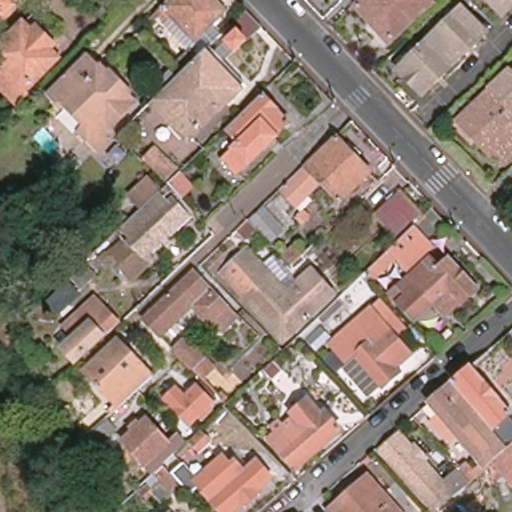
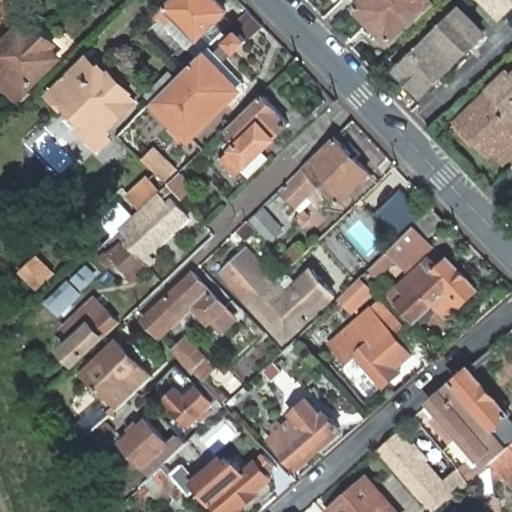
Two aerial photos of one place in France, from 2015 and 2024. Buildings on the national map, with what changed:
unchanged [(13,0),(16,4),(0,19),(0,0),(13,0)]
unchanged [(196,42),(175,19),(166,27),(160,21),(155,26),(150,21),(164,7),(166,9),(176,0),(213,0),(226,14),(196,42)]
unchanged [(428,0),(426,2),(431,7),(393,42),(375,23),(372,25),(357,10),(367,0),(428,0)]
unchanged [(484,0),(512,0),(512,7),(501,17),(484,0)]
unchanged [(462,12),(484,35),(423,94),(401,72),(462,12)]
unchanged [(25,94),(15,104),(0,88),(0,69),(0,68),(0,40),(19,22),(28,31),(37,22),(55,41),(46,49),(52,55),(18,87),(25,94)]
unchanged [(150,107),(180,79),(185,74),(179,68),(189,57),(195,64),(200,60),(207,52),(242,90),(235,97),(185,144),(150,107)]
unchanged [(106,142),(96,152),(74,129),(79,124),(65,108),(52,96),(92,57),(104,69),(137,105),(102,138),(106,142)]
unchanged [(465,122),(468,119),(465,116),(477,103),(482,108),(502,90),(504,92),(512,84),(512,159),(510,160),(501,151),(496,155),(480,137),(473,142),(460,127),(465,122)]
unchanged [(265,99),(290,127),(237,177),(223,161),(239,145),(227,133),(265,99)]
unchanged [(341,139),(376,176),(345,205),(324,181),(298,206),(285,192),(341,139)]
unchanged [(169,179),(156,166),(147,157),(154,151),(163,159),(176,172),(169,179)]
unchanged [(180,177),(190,186),(181,194),(172,185),(180,177)]
unchanged [(156,262),(136,281),(115,258),(108,265),(101,257),(108,250),(110,252),(121,242),(131,253),(135,250),(129,242),(131,240),(122,231),(142,212),(140,210),(141,209),(130,197),(150,179),(160,192),(156,195),(160,201),(166,207),(173,202),(190,222),(170,239),(151,257),(156,262)]
unchanged [(413,223),(399,237),(378,217),(403,192),(423,214),(413,223)]
unchanged [(370,282),(363,273),(388,249),(399,237),(413,223),(423,214),(431,205),(445,220),(427,237),(432,242),(405,267),(396,257),(371,282),(370,282)]
unchanged [(283,232),(271,243),(252,222),(263,211),(283,232)]
unchanged [(257,232),(247,242),(237,232),(248,223),(257,232)]
unchanged [(293,249),(302,258),(291,270),(282,260),(293,249)]
unchanged [(285,343),(222,278),(248,254),(262,270),(273,257),(290,275),(287,278),(296,287),(311,272),(315,276),(335,295),(285,343)]
unchanged [(478,286),(461,301),(460,298),(444,313),(432,300),(415,313),(402,298),(398,301),(390,292),(431,254),(440,264),(451,255),(478,286)]
unchanged [(56,272),(40,287),(27,272),(43,257),(56,272)]
unchanged [(222,335),(213,325),(195,305),(160,337),(145,322),(195,274),(229,310),(238,320),(222,335)]
unchanged [(97,301),(120,325),(76,365),(65,353),(76,342),(66,330),(97,301)]
unchanged [(394,368),(397,371),(380,387),(354,357),(347,364),(331,347),(370,310),(380,301),(392,316),(383,324),(410,353),(394,368)]
unchanged [(512,335),(512,339),(510,337),(512,335)]
unchanged [(91,432),(86,425),(106,405),(109,407),(115,401),(85,368),(102,353),(105,356),(121,341),(154,373),(138,388),(91,432)]
unchanged [(206,385),(194,372),(176,354),(188,342),(206,361),(218,373),(206,385)]
unchanged [(490,353),(495,358),(481,369),(478,365),(490,353)]
unchanged [(275,367),(282,375),(274,383),(266,375),(275,367)]
unchanged [(510,448),(493,431),(495,429),(456,383),(472,370),(511,416),(507,420),(512,425),(512,451),(511,450),(510,448)]
unchanged [(486,468),(458,436),(450,442),(438,428),(445,422),(431,405),(454,385),(493,431),(510,448),(486,468)]
unchanged [(178,392),(185,400),(197,389),(214,406),(207,411),(211,415),(206,420),(202,416),(189,427),(165,403),(178,392)]
unchanged [(227,403),(221,398),(225,394),(230,400),(227,403)]
unchanged [(295,418),(291,415),(308,401),(321,416),(325,412),(340,430),(295,468),(270,441),(295,418)]
unchanged [(110,419),(119,428),(105,442),(96,432),(110,419)]
unchanged [(164,465),(155,473),(153,475),(124,445),(149,422),(171,445),(179,437),(186,445),(165,467),(164,465)]
unchanged [(379,455),(400,436),(450,492),(430,510),(379,455)]
unchanged [(469,467),(481,480),(490,471),(509,452),(512,455),(512,486),(505,478),(493,488),(489,492),(479,482),(476,483),(462,493),(451,482),(465,471),(469,467)]
unchanged [(225,462),(231,470),(237,465),(246,476),(259,465),(273,481),(258,493),(258,495),(242,508),(241,508),(237,512),(220,512),(196,486),(225,462)]
unchanged [(171,492),(162,499),(149,484),(155,474),(157,476),(165,467),(184,487),(175,496),(171,492)]
unchanged [(368,481),(395,512),(333,512),(368,481)]

